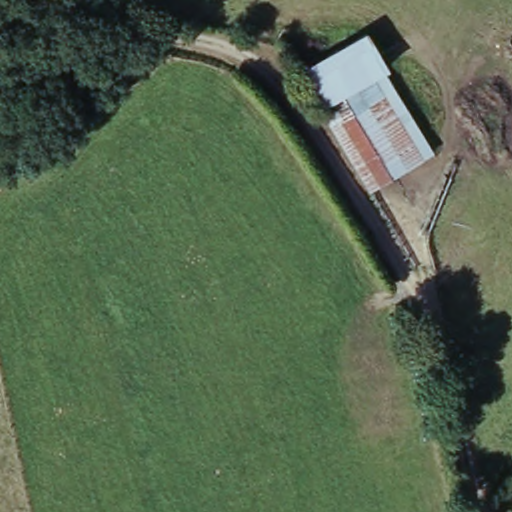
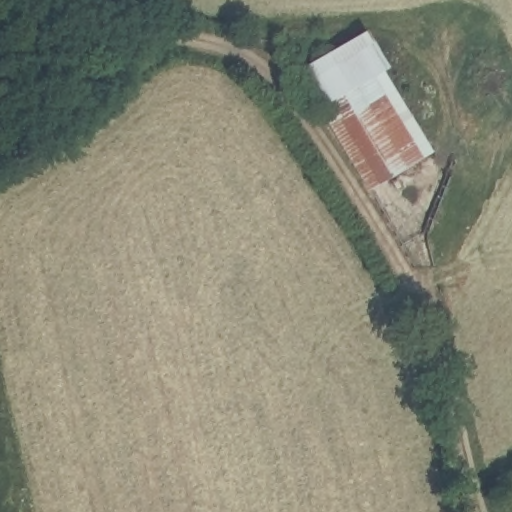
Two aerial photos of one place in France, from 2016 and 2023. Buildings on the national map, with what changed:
unchanged [(305,74),(363,40),(384,73),(380,76),(327,107),(305,74)]
unchanged [(430,156),(378,185),(327,107),(380,76),(430,156)]

